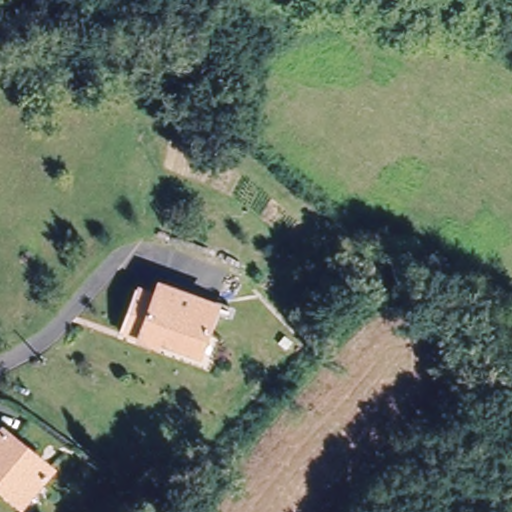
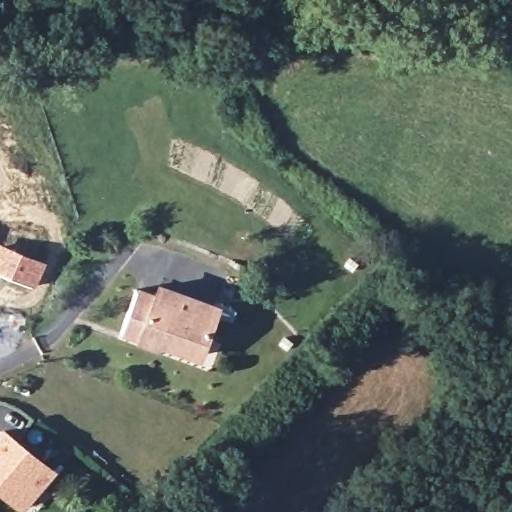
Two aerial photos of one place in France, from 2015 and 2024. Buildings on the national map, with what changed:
new [(34,288),(0,274),(0,242),(46,262),(34,288)]
unchanged [(164,339),(163,342),(149,337),(129,330),(144,287),(162,293),(167,282),(222,302),(213,327),(205,350),(185,342),(184,346),(164,339)]
unchanged [(20,505),(0,489),(0,432),(47,471),(20,505)]

